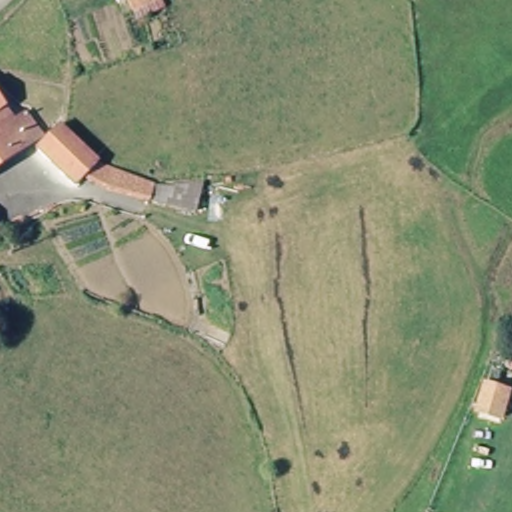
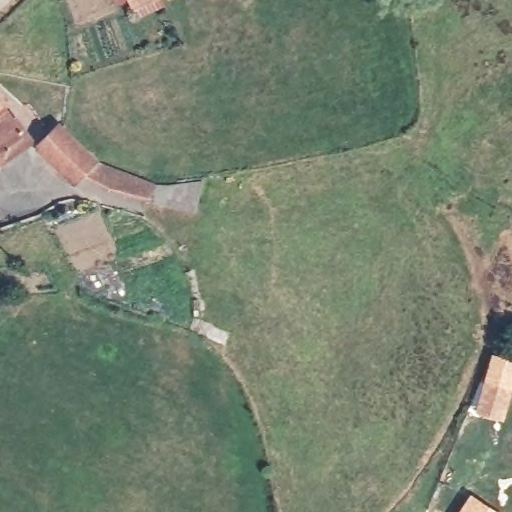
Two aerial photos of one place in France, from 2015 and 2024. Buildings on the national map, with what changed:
unchanged [(0,182),(0,126),(9,138),(21,129),(40,151),(0,182)]
unchanged [(78,204),(36,165),(59,144),(99,181),(86,195),(78,204)]
unchanged [(109,210),(86,195),(99,181),(150,201),(152,218),(109,210)]
unchanged [(0,253),(0,241),(6,251),(0,253)]
unchanged [(474,419),(482,394),(503,399),(496,426),(474,419)]
new [(471,494),(498,512),(458,512),(471,494)]

